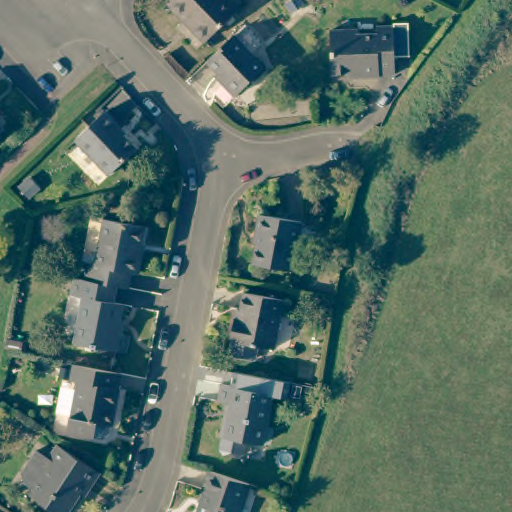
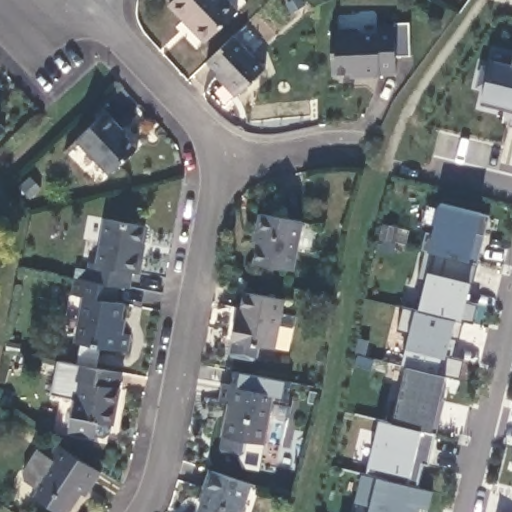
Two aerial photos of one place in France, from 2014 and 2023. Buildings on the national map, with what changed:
unchanged [(188,15),(174,0),(234,0),(242,8),(213,35),(210,37),(188,15)]
unchanged [(364,25),(369,29),(382,29),(382,22),(400,21),(400,19),(414,18),(415,52),(400,52),(400,72),(384,72),(384,71),(366,71),(366,69),(338,70),(337,27),(364,25)]
unchanged [(270,65),(240,92),(228,80),(230,77),(211,57),(239,31),(270,65)]
new [(481,100),(491,59),(493,51),(512,56),(512,113),(480,106),(481,100)]
unchanged [(115,172),(82,136),(111,109),(125,123),(123,125),(142,145),(115,172)]
unchanged [(0,136),(0,125),(5,132),(0,136)]
new [(479,261),(427,248),(422,247),(426,229),(433,231),(441,201),(490,212),(485,234),(483,244),(479,261)]
unchanged [(296,262),(258,255),(264,224),(262,224),(266,206),(306,214),(296,262)]
unchanged [(95,258),(104,260),(113,216),(152,223),(143,269),(138,268),(134,285),(122,282),(92,277),(95,258)]
new [(425,281),(417,279),(427,248),(479,261),(471,281),(466,300),(479,302),(474,322),(466,320),(461,318),(419,308),(425,281)]
unchanged [(119,299),(129,302),(123,329),(134,332),(131,350),(81,340),(88,295),(77,292),(80,275),(92,277),(122,282),(119,299)]
unchanged [(279,346),(237,336),(241,315),(244,316),(250,288),(290,296),(279,346)]
new [(453,336),(451,347),(447,346),(445,352),(467,358),(462,377),(449,375),(409,365),(404,363),(412,332),(399,328),(405,305),(419,308),(461,318),(466,320),(462,338),(453,336)]
unchanged [(120,383),(124,384),(116,420),(115,420),(113,428),(107,433),(98,431),(98,432),(72,427),(75,412),(77,412),(84,378),(76,377),(80,361),(123,370),(120,383)]
new [(449,375),(439,413),(443,415),(439,431),(392,420),(397,399),(401,400),(409,365),(449,375)]
unchanged [(268,441),(253,437),(250,450),(243,453),(230,451),(225,443),(231,412),(233,413),(236,401),(225,399),(228,382),(278,392),(268,441)]
new [(447,399),(443,415),(439,413),(443,398),(447,399)]
new [(392,420),(439,431),(434,452),(419,449),(417,457),(427,459),(420,486),(369,473),(382,417),(392,420)]
unchanged [(70,512),(68,512),(43,495),(41,483),(42,482),(31,475),(28,468),(43,446),(54,452),(62,441),(105,469),(97,482),(90,492),(86,488),(70,512)]
new [(434,452),(431,463),(426,462),(427,459),(417,457),(419,449),(434,452)]
unchanged [(198,512),(207,488),(205,487),(212,467),(260,484),(251,512),(198,512)]
new [(359,497),(365,472),(435,490),(431,507),(421,505),(420,512),(371,512),(374,500),(359,497)]

